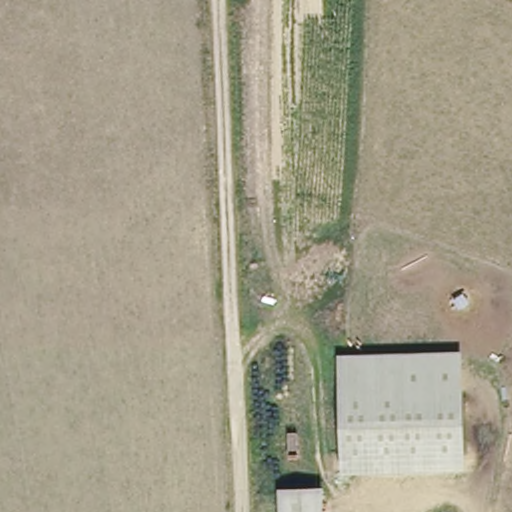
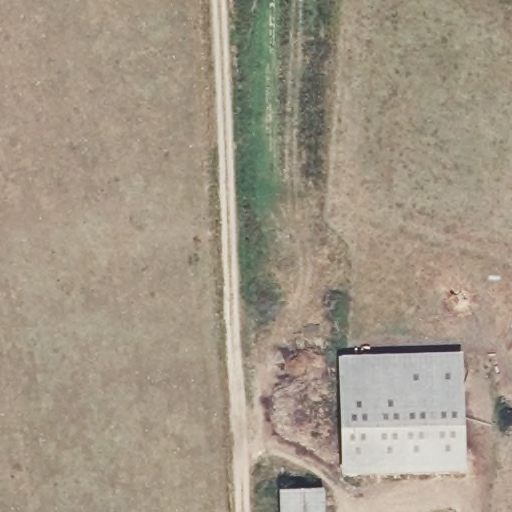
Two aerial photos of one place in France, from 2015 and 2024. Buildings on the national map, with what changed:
unchanged [(336,356),(458,352),(461,457),(463,471),(341,476),(340,460),(336,356)]
unchanged [(320,488),(324,487),(325,512),(278,512),(277,488),(320,488)]

